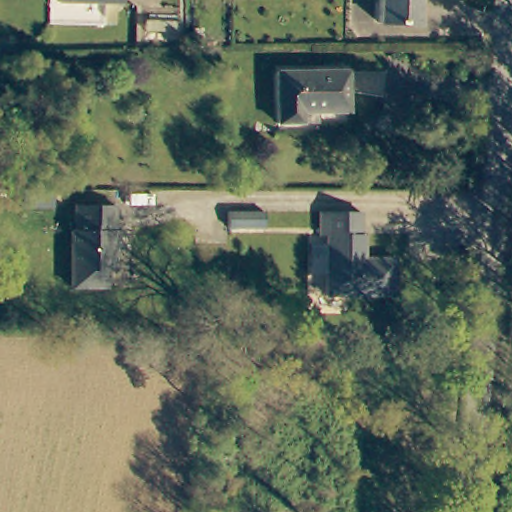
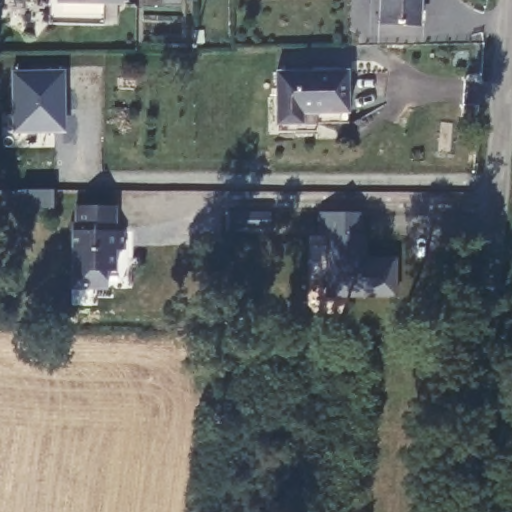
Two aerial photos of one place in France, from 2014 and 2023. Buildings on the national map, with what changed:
unchanged [(121,0),(120,8),(55,6),(56,0),(121,0)]
unchanged [(420,0),(418,25),(378,22),(380,0),(420,0)]
new [(12,70),(63,70),(64,87),(60,88),(61,130),(12,131),(12,70)]
unchanged [(277,76),(347,75),(348,115),(302,116),(302,127),(275,126),(277,76)]
new [(19,191),(51,191),(51,209),(19,208),(19,191)]
unchanged [(97,288),(71,288),(71,231),(73,231),(74,206),(113,206),(113,231),(123,231),(121,250),(114,250),(114,272),(106,271),(105,289),(97,288)]
unchanged [(258,228),(228,228),(228,212),(259,212),(258,228)]
unchanged [(366,218),(366,260),(370,265),(402,267),(401,304),(331,304),(332,242),(324,242),(325,218),(366,218)]

